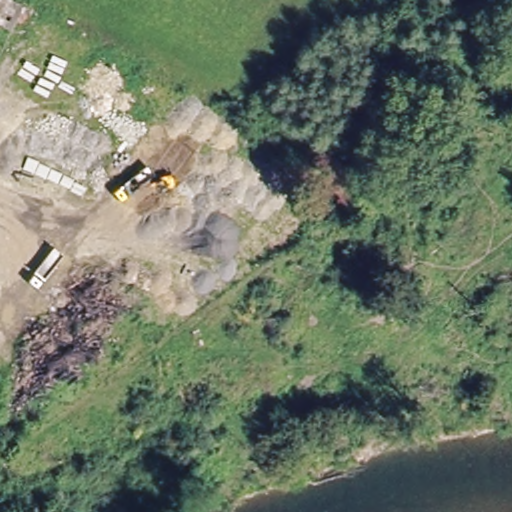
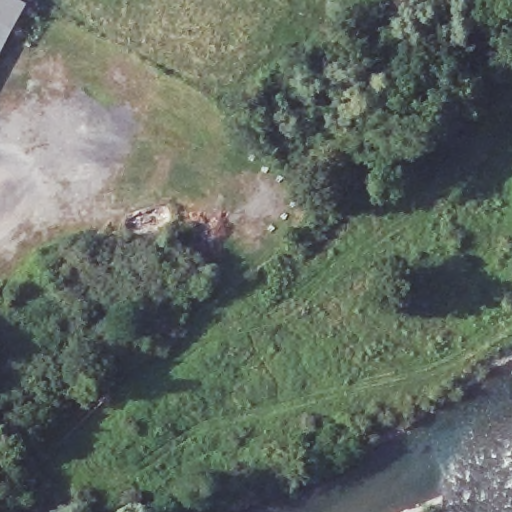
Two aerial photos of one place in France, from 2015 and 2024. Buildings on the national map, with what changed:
new [(25,4),(0,53),(0,0),(17,0),(25,4)]

